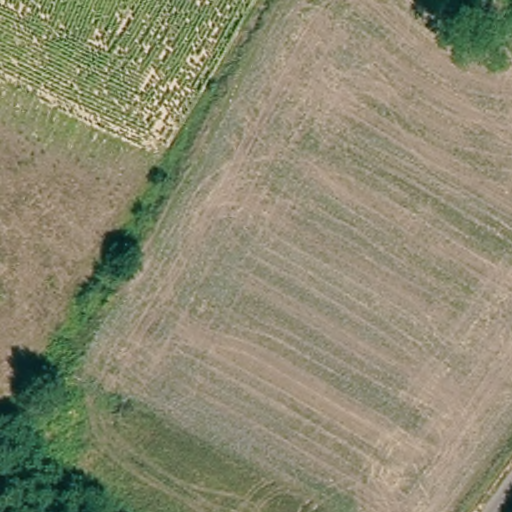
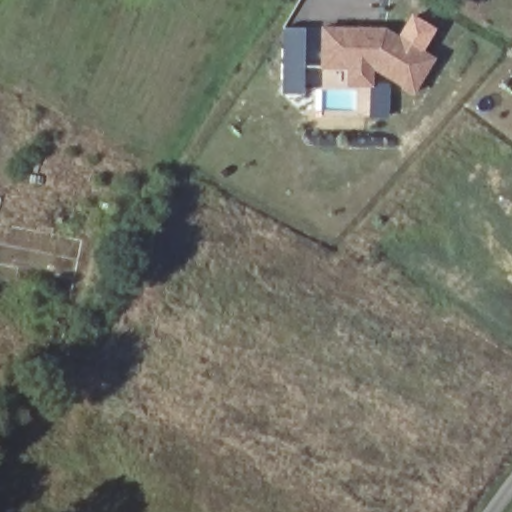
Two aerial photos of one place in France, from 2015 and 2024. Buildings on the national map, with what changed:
new [(384,27),(437,61),(413,96),(374,71),(373,88),(348,88),(348,71),(319,71),(320,27),(384,27)]
new [(283,94),(284,30),(305,31),(303,95),(283,94)]

